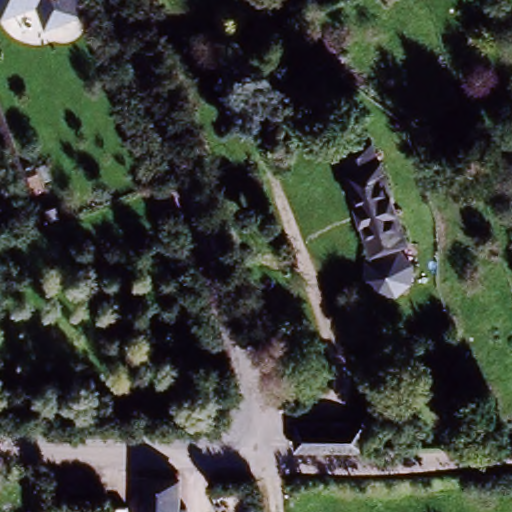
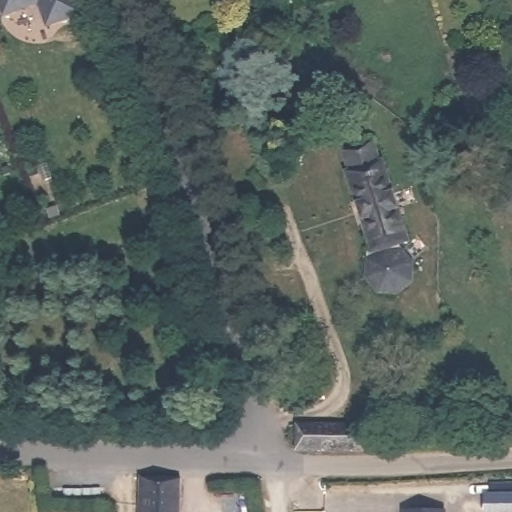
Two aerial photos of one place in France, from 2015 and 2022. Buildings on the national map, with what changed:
unchanged [(47,26),(37,5),(0,17),(0,0),(75,0),(81,14),(47,26)]
unchanged [(361,241),(368,226),(348,140),(379,132),(387,161),(400,219),(411,227),(416,254),(409,269),(382,276),(367,269),(361,241)]
unchanged [(293,447),(292,417),(359,414),(361,445),(293,447)]
unchanged [(184,468),(183,512),(137,512),(139,467),(184,468)]
new [(512,492),(512,512),(484,512),(483,493),(512,492)]

